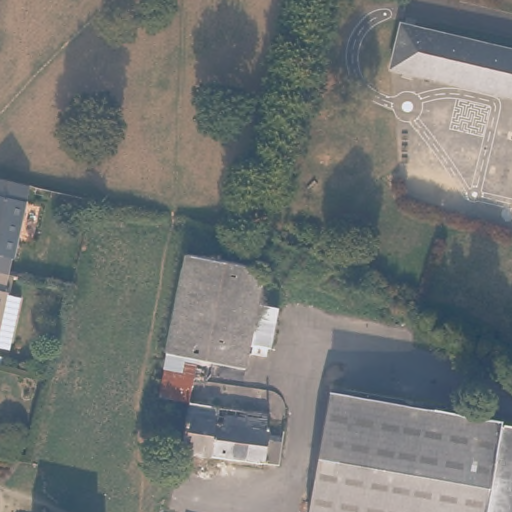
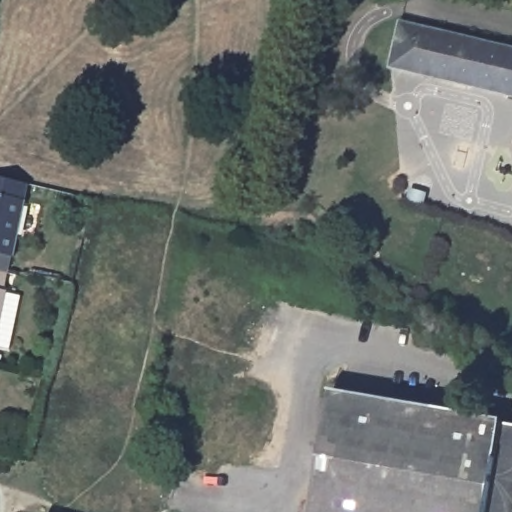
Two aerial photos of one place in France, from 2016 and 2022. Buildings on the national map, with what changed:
unchanged [(512,46),(512,93),(395,66),(404,22),(512,46)]
unchanged [(26,193),(27,193),(14,249),(10,248),(6,264),(0,263),(0,170),(30,176),(26,193)]
demolished [(258,270),(250,320),(270,324),(265,350),(260,349),(258,358),(244,355),(241,370),(206,363),(201,387),(187,384),(184,402),(155,396),(164,354),(162,354),(180,254),(258,270)]
unchanged [(3,281),(6,282),(6,283),(20,286),(10,340),(0,338),(0,263),(6,264),(3,281)]
unchanged [(512,421),(512,512),(311,512),(332,390),(512,421)]
demolished [(222,408),(230,409),(237,410),(267,415),(265,431),(270,432),(269,434),(283,437),(279,466),(182,451),(190,403),(222,408)]

